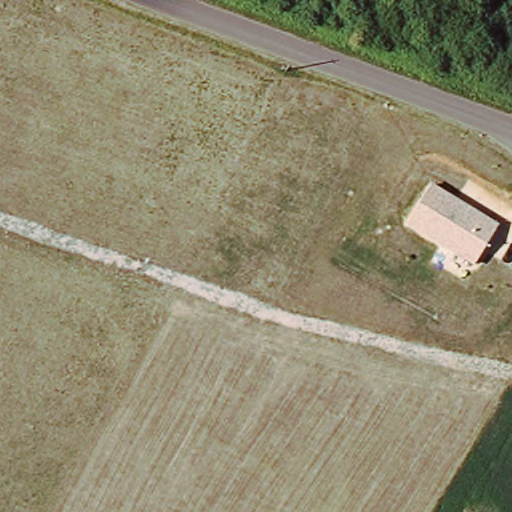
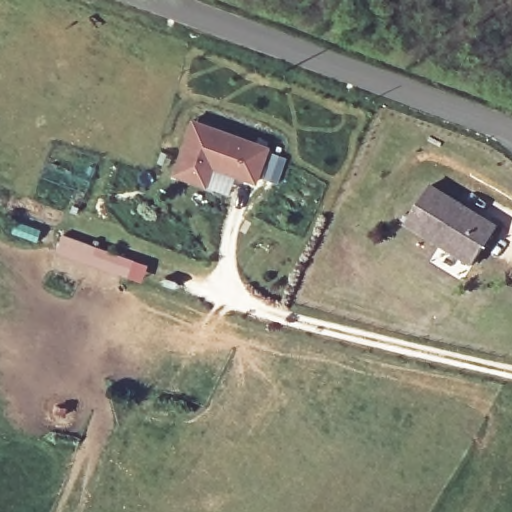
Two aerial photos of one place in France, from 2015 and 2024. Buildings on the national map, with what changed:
new [(193,118),(271,145),(256,183),(213,168),(208,185),(172,173),(193,118)]
unchanged [(404,224),(430,182),(499,225),(473,266),(404,224)]
new [(148,265),(142,281),(57,250),(63,233),(148,265)]

